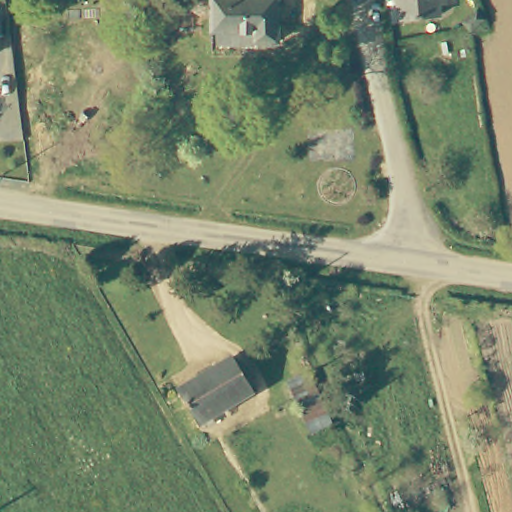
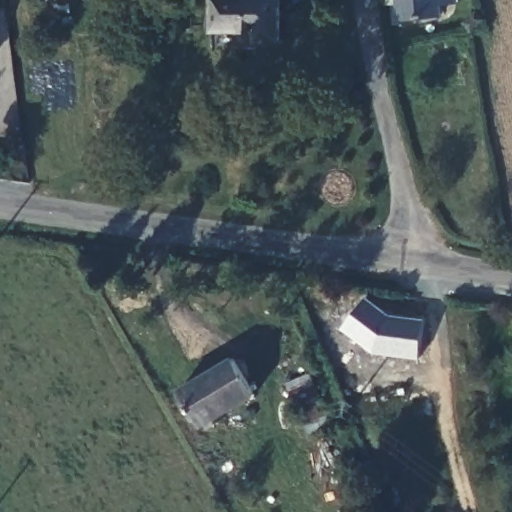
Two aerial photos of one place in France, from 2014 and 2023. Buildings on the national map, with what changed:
unchanged [(275,44),(249,44),(249,33),(208,33),(208,0),(275,0),(275,44)]
unchanged [(446,3),(432,4),(431,18),(391,20),(389,0),(446,0),(446,3)]
new [(363,299),(388,316),(423,321),(418,359),(373,353),(341,329),(363,299)]
unchanged [(233,359),(255,395),(201,428),(179,390),(233,359)]
unchanged [(298,406),(319,397),(333,427),(312,436),(298,406)]

